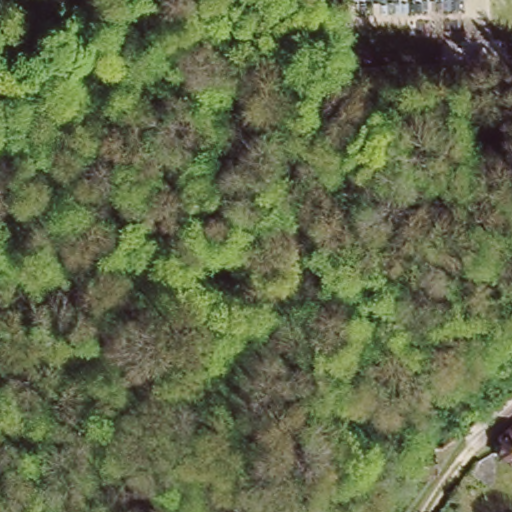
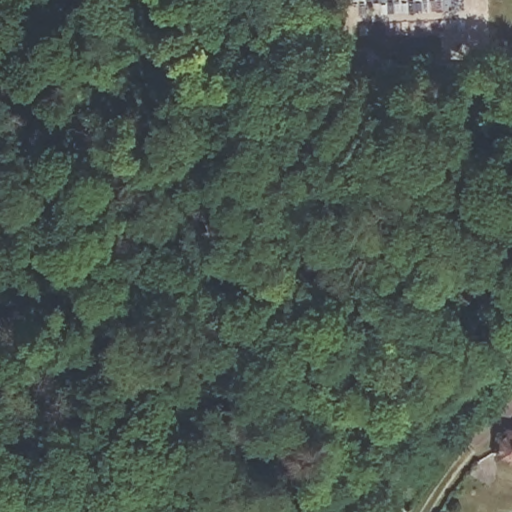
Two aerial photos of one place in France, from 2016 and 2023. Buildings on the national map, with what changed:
unchanged [(512,447),(509,446),(510,434),(512,434),(512,447)]

